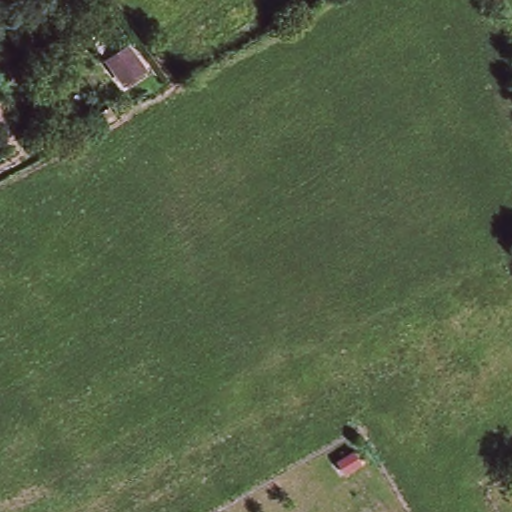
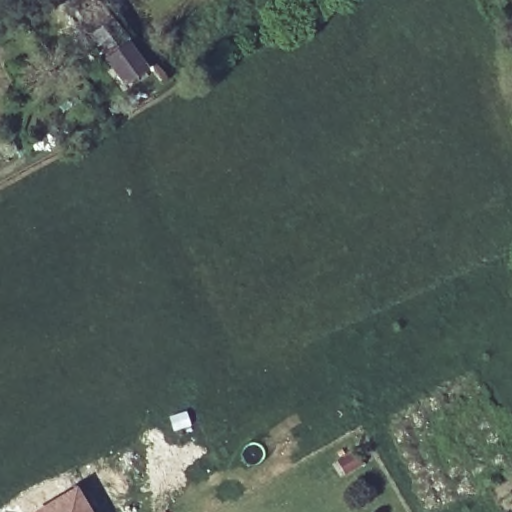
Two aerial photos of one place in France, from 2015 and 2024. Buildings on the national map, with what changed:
unchanged [(145,69),(126,84),(107,61),(129,45),(145,69)]
new [(93,512),(34,512),(33,511),(77,485),(93,512)]

